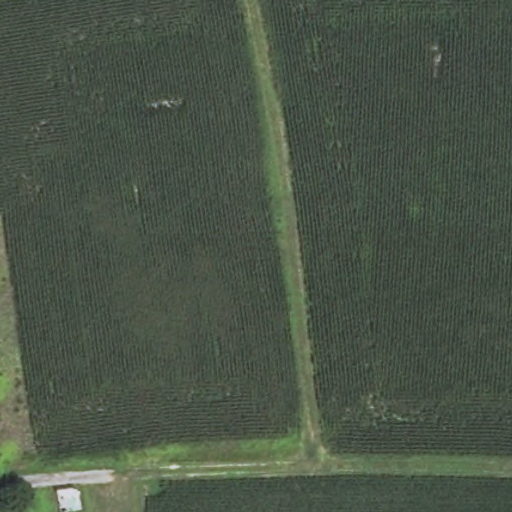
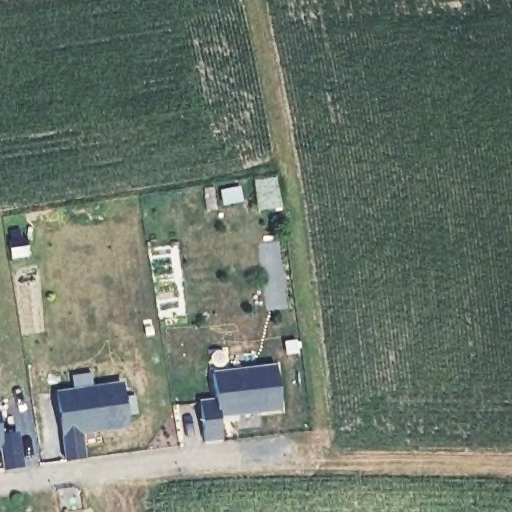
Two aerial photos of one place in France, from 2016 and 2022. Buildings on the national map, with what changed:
new [(277,364),(281,410),(237,415),(237,420),(221,422),(221,439),(207,441),(201,401),(219,399),(214,373),(277,364)]
new [(121,382),(129,427),(82,434),(85,459),(66,461),(56,392),(121,382)]

